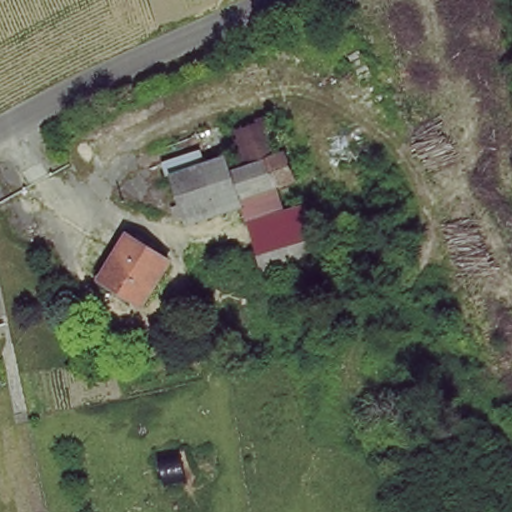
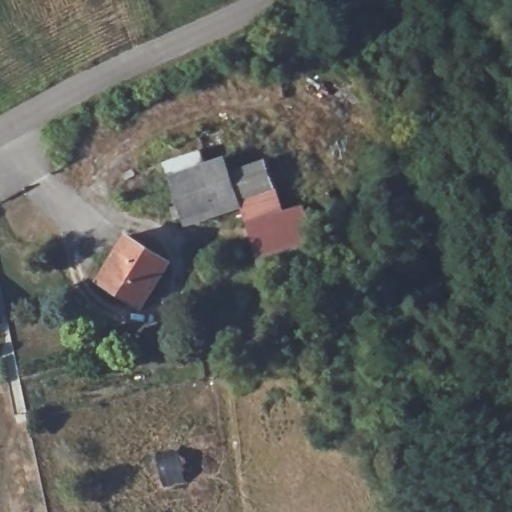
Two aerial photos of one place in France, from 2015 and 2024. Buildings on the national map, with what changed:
unchanged [(280,118),(289,145),(243,161),(235,132),(280,118)]
unchanged [(223,170),(229,185),(277,165),(286,192),(214,221),(198,180),(223,170)]
unchanged [(214,221),(187,232),(171,192),(198,180),(214,221)]
unchanged [(269,270),(256,236),(309,214),(322,247),(269,270)]
unchanged [(173,267),(142,305),(105,277),(135,240),(173,267)]

